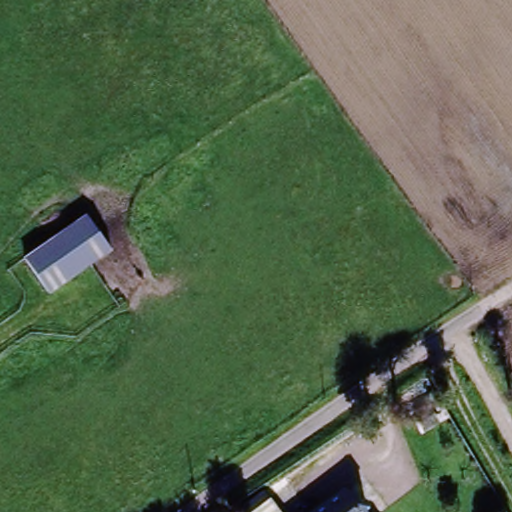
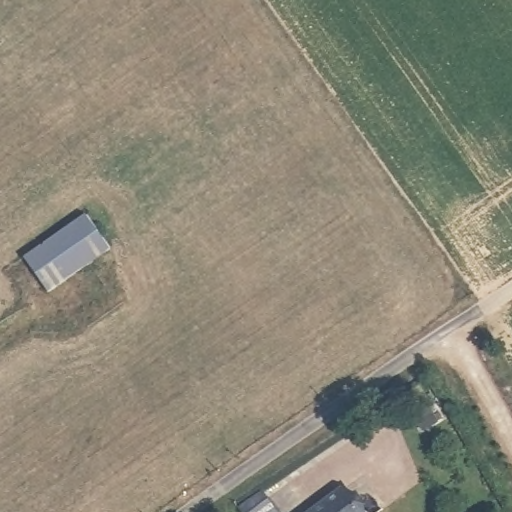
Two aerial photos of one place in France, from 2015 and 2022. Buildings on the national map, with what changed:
unchanged [(44,295),(20,258),(84,215),(108,252),(44,295)]
unchanged [(337,495),(350,512),(314,512),(337,495)]
unchanged [(267,498),(276,512),(248,512),(267,498)]

